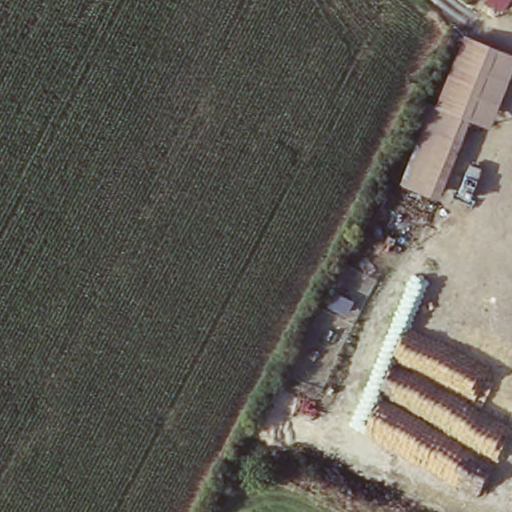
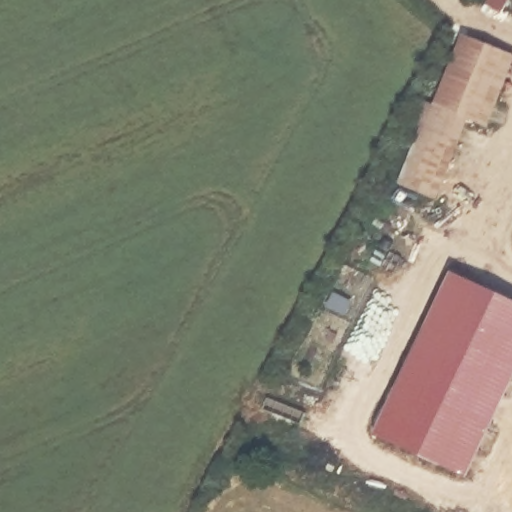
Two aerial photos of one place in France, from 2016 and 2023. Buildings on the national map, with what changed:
unchanged [(393,186),(423,102),(434,106),(461,35),(512,55),(512,71),(491,128),(469,123),(439,203),(393,186)]
new [(452,269),(512,296),(512,380),(469,480),(377,440),(452,269)]

